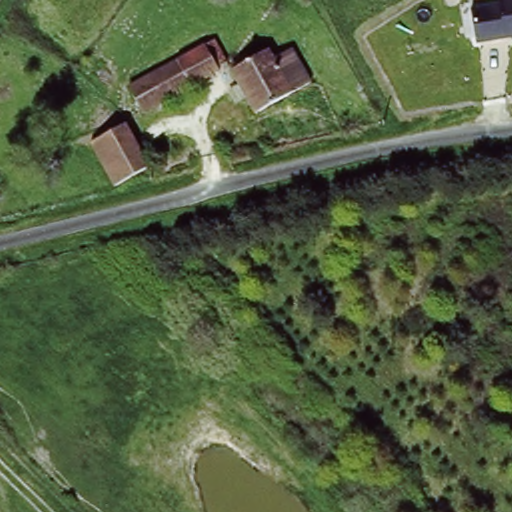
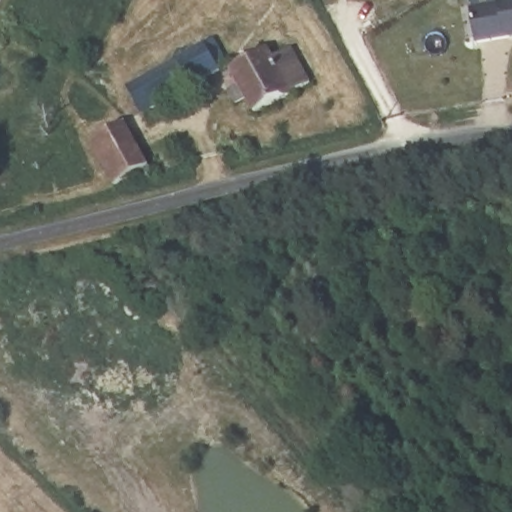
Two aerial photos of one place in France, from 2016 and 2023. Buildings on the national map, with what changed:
unchanged [(496,5),(495,0),(512,0),(512,36),(477,42),(470,10),(496,5)]
unchanged [(226,66),(216,72),(217,75),(145,116),(127,88),(211,39),(226,66)]
unchanged [(272,60),(290,50),(308,82),(255,112),(230,72),(267,51),(272,60)]
unchanged [(146,166),(112,185),(89,144),(123,125),(146,166)]

